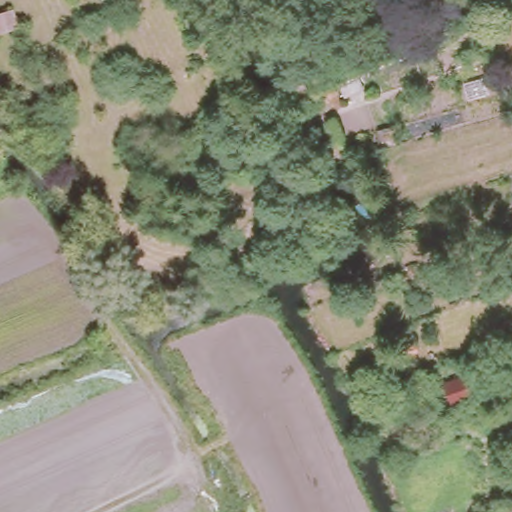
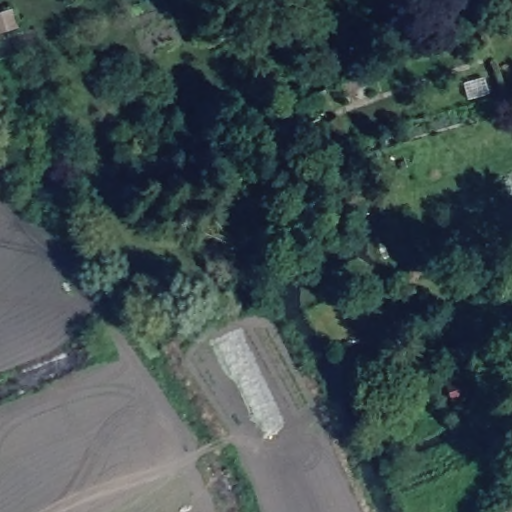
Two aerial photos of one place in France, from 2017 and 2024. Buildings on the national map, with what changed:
unchanged [(5,29),(0,31),(0,14),(5,29)]
unchanged [(377,68),(382,83),(353,95),(348,80),(377,68)]
unchanged [(327,73),(332,87),(305,98),(300,85),(327,73)]
unchanged [(467,373),(473,393),(452,401),(445,381),(467,373)]
unchanged [(512,512),(492,512),(512,505),(512,512)]

